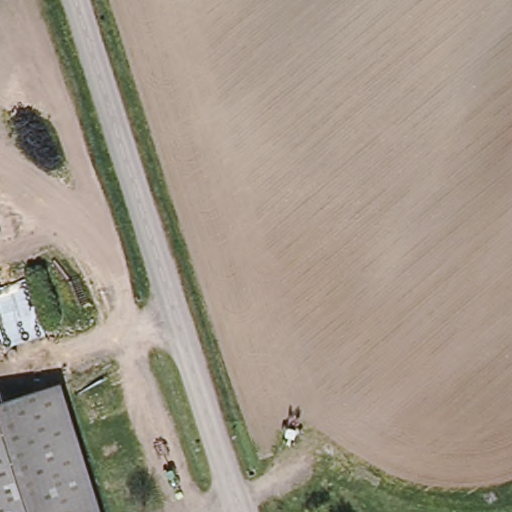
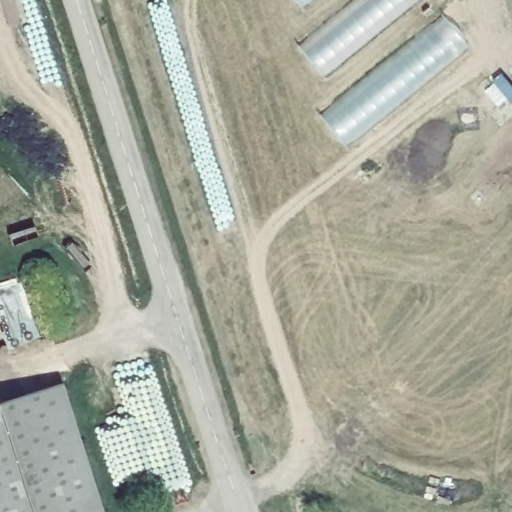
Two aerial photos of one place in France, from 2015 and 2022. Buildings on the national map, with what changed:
new [(296,0),(315,0),(304,9),(296,0)]
new [(420,0),(325,77),(300,48),(358,0),(420,0)]
new [(445,17),(474,48),(348,144),(322,115),(445,17)]
unchanged [(99,512),(0,512),(0,400),(58,381),(99,512)]

